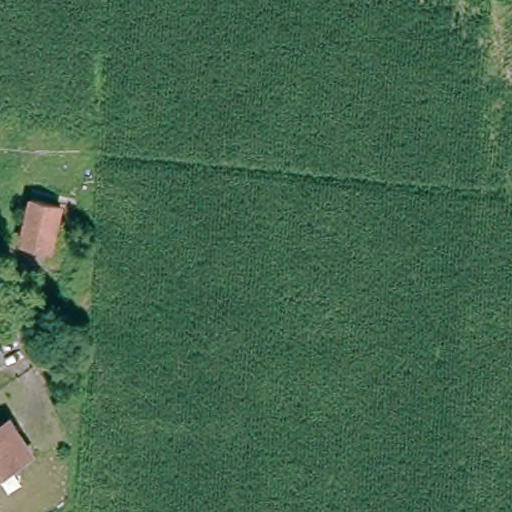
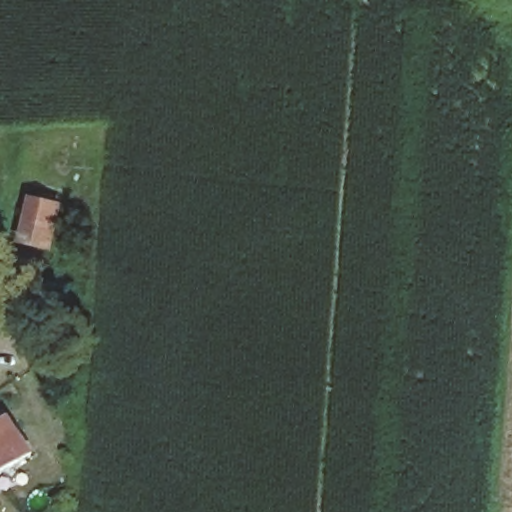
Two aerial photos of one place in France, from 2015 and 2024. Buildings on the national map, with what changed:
unchanged [(51,250),(24,246),(32,202),(57,207),(51,250)]
unchanged [(0,477),(0,431),(11,424),(31,456),(0,477)]

